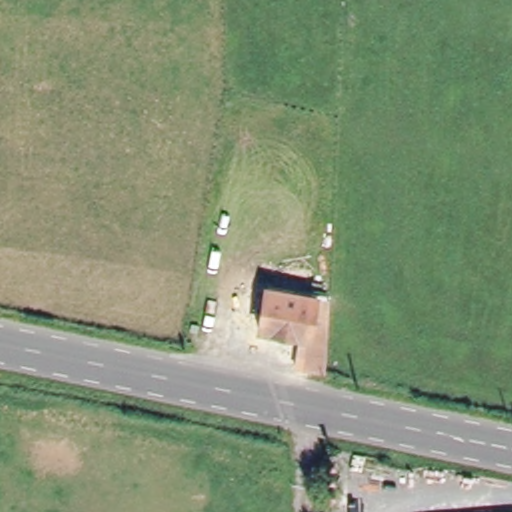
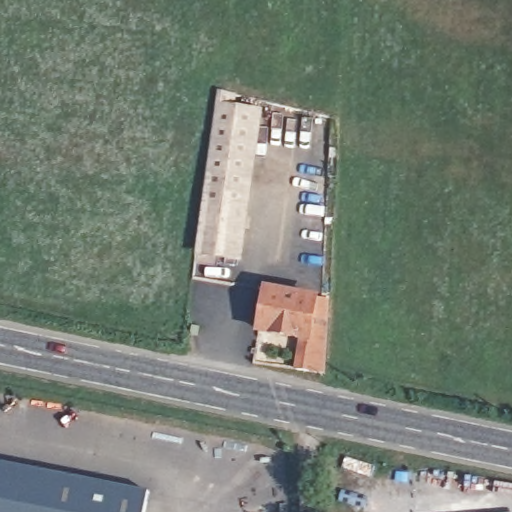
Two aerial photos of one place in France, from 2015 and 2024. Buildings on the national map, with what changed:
new [(196,256),(218,91),(234,94),(233,104),(263,108),(241,262),(196,256)]
unchanged [(265,337),(266,322),(269,303),(265,302),(263,299),(261,296),(262,292),(264,289),(267,287),(271,286),(274,287),(277,290),(278,293),(278,297),(285,297),(287,286),(308,292),(307,302),(332,308),(328,382),(307,378),(310,348),(265,337)]
new [(147,491),(144,512),(0,512),(0,462),(147,491)]

